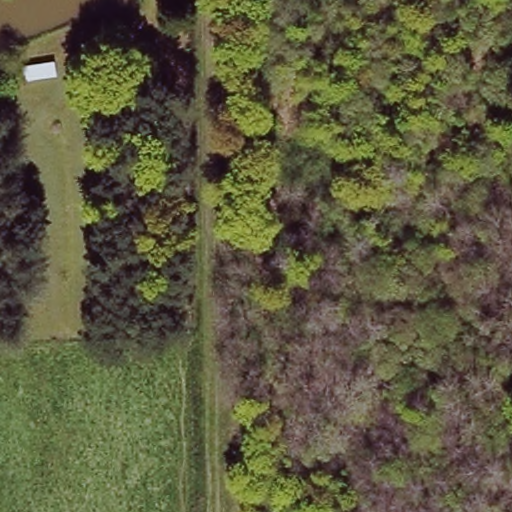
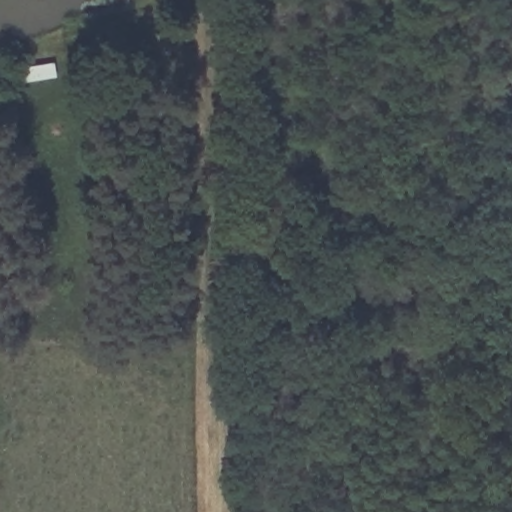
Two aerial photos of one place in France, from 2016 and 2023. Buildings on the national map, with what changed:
[]

